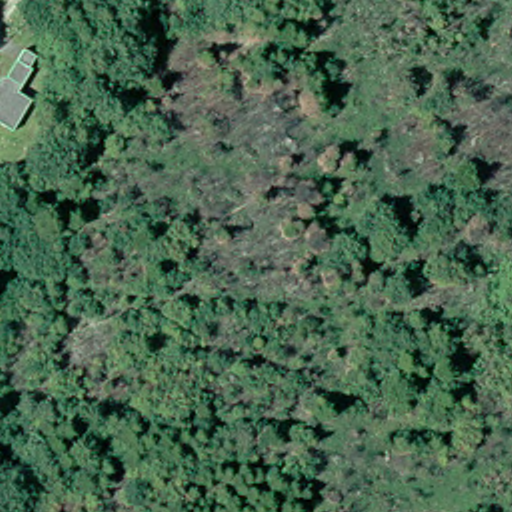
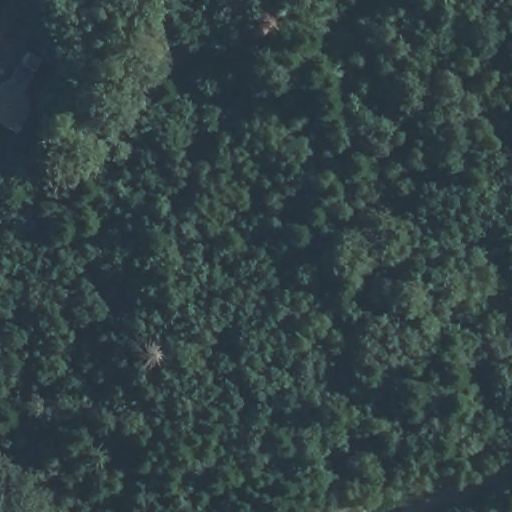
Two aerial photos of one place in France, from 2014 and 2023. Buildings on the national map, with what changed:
unchanged [(7,74),(23,39),(47,50),(5,124),(0,121),(0,75),(7,74)]
unchanged [(71,137),(43,115),(64,89),(89,111),(71,137)]

